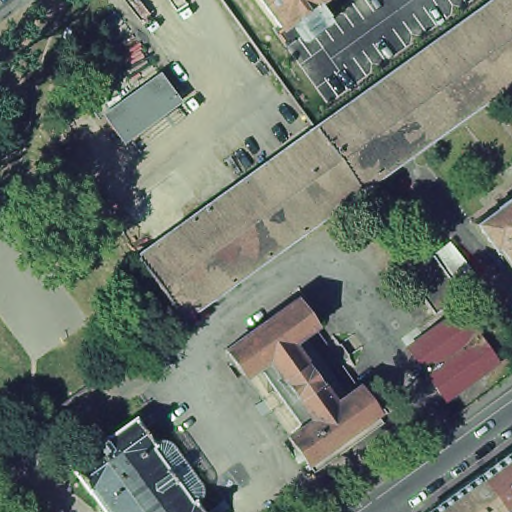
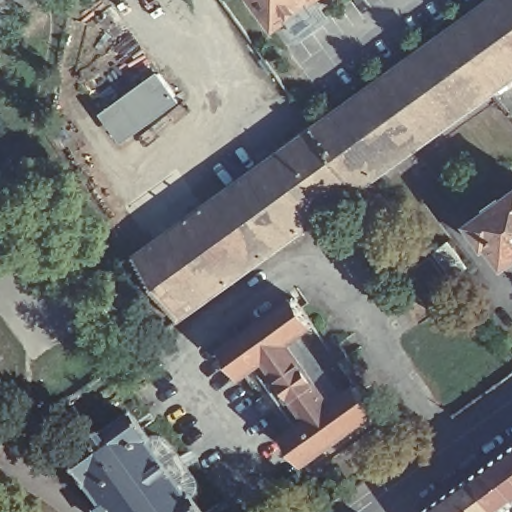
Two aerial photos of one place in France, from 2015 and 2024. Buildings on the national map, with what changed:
unchanged [(281,22),(275,27),(255,0),(312,0),(297,11),(308,26),(292,37),(281,22)]
unchanged [(512,0),(512,80),(365,186),(318,122),(486,0),(512,0)]
unchanged [(165,74),(180,96),(130,133),(113,111),(165,74)]
unchanged [(318,122),(365,186),(186,316),(174,299),(139,251),(318,122)]
unchanged [(493,206),(493,205),(506,196),(507,197),(512,193),(512,264),(508,266),(493,244),(490,247),(471,222),(493,206)]
unchanged [(468,267),(455,278),(435,253),(448,242),(468,267)]
unchanged [(432,255),(461,294),(434,314),(405,275),(432,255)]
unchanged [(290,299),(309,325),(285,342),(329,402),(352,386),(371,412),(301,462),(283,436),(306,418),(263,358),(240,375),(220,349),(290,299)]
unchanged [(460,309),(496,362),(444,399),(407,347),(460,309)]
unchanged [(93,447),(93,446),(106,437),(107,437),(134,417),(153,443),(150,447),(190,503),(194,501),(202,512),(104,512),(105,512),(90,490),(88,491),(70,465),(93,447)]
unchanged [(512,449),(512,506),(505,511),(504,512),(477,474),(512,449)]
unchanged [(477,474),(504,512),(425,512),(477,474)]

